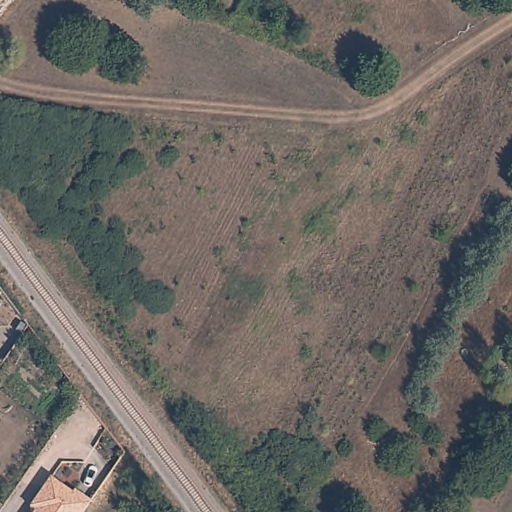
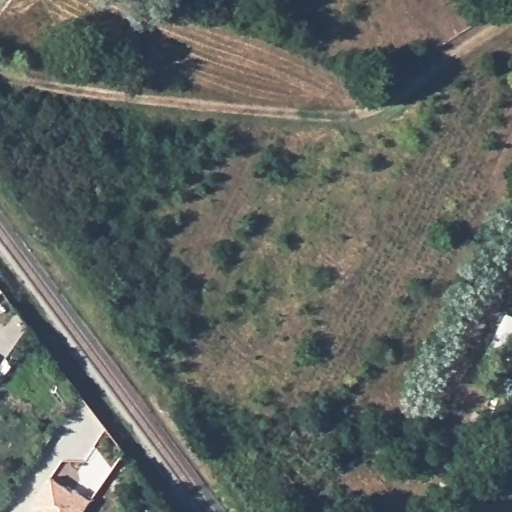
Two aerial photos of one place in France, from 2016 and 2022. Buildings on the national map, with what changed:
unchanged [(81,512),(34,512),(35,510),(30,506),(50,475),(72,492),(74,491),(88,501),(81,512)]

